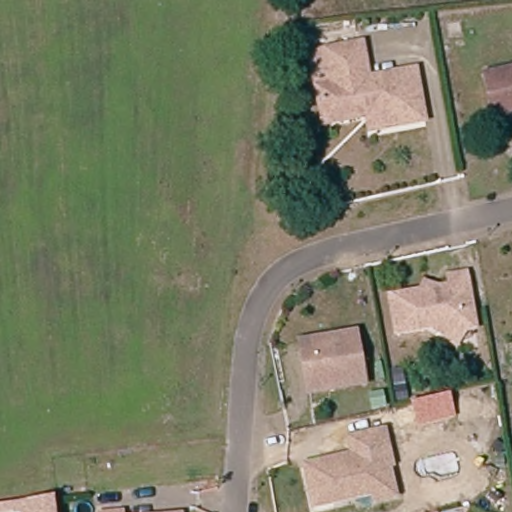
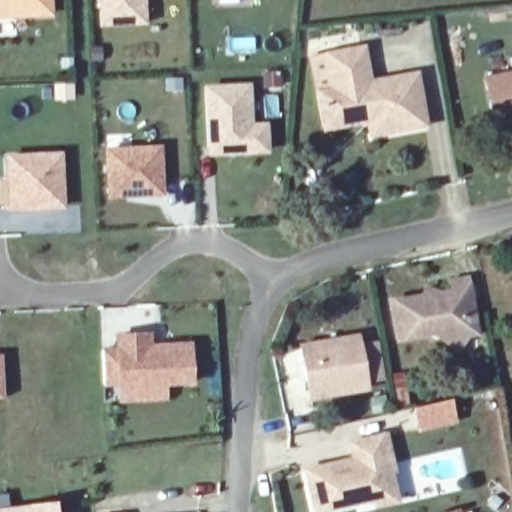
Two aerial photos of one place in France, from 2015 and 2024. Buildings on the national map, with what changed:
new [(0,20),(0,0),(52,0),(53,16),(0,20)]
new [(99,26),(97,0),(145,0),(147,24),(99,26)]
unchanged [(373,119),(331,126),(329,119),(318,54),(369,45),(376,85),(385,83),(385,79),(422,71),(432,123),(395,129),(377,133),(373,119)]
unchanged [(512,70),(512,111),(508,113),(507,114),(505,116),(503,118),(501,118),(498,116),(493,114),(486,77),(512,70)]
new [(251,83),(253,123),(267,122),(270,152),(209,157),(204,85),(251,83)]
new [(162,144),(165,198),(106,199),(105,149),(162,144)]
new [(63,152),(64,208),(10,210),(7,154),(63,152)]
unchanged [(451,338),(441,332),(405,339),(398,302),(457,290),(456,281),(473,278),(483,332),(474,334),(465,348),(451,338)]
new [(115,348),(114,334),(152,333),(152,344),(192,342),(195,383),(167,386),(167,400),(119,403),(118,387),(104,388),(102,349),(115,348)]
unchanged [(311,382),(304,343),(360,333),(369,384),(346,388),(313,394),(311,382)]
new [(5,398),(0,398),(0,353),(2,353),(5,398)]
new [(418,431),(412,407),(451,398),(457,422),(418,431)]
unchanged [(379,504),(377,498),(377,496),(371,498),(317,511),(313,494),(307,469),(341,461),(342,467),(351,464),(354,459),(350,442),(385,433),(393,468),(401,499),(397,499),(379,504)]
new [(0,508),(56,501),(57,512),(0,512),(0,508)]

